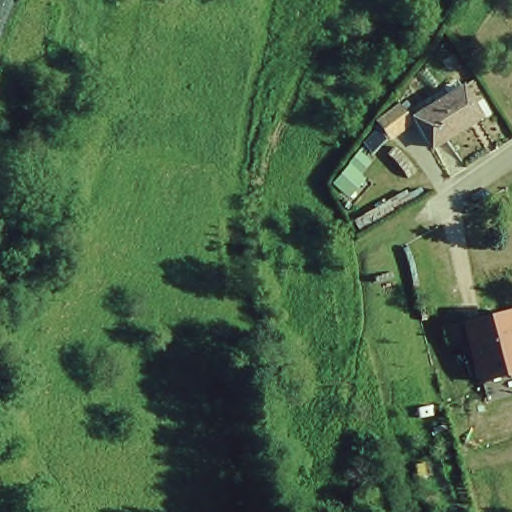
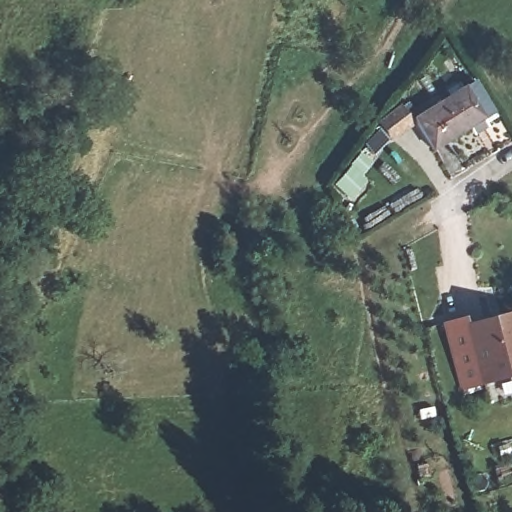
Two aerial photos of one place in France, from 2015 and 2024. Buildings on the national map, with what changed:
unchanged [(433,148),(414,119),(463,87),(483,118),(433,148)]
unchanged [(512,320),(512,374),(480,384),(464,326),(510,313),(512,320)]

